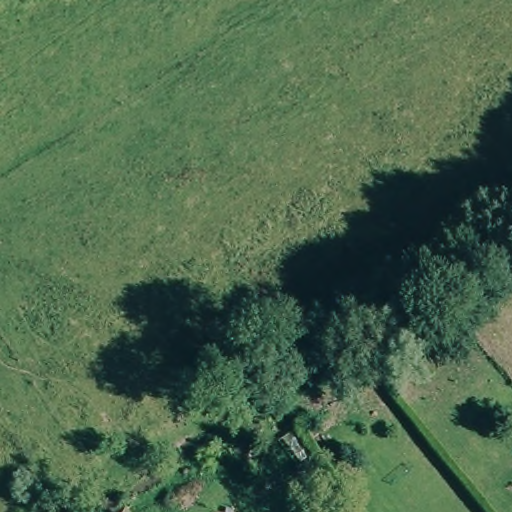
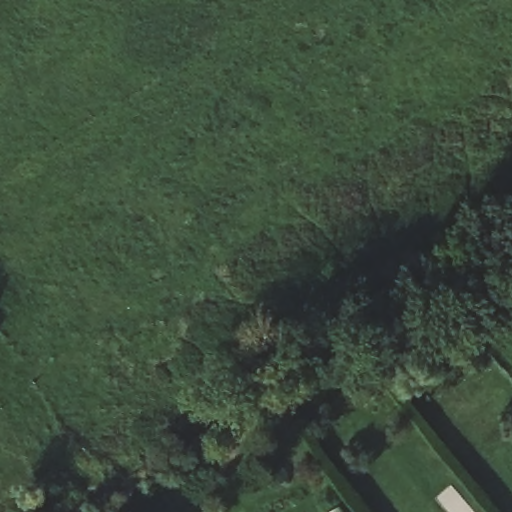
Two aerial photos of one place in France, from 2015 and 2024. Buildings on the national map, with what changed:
[]

